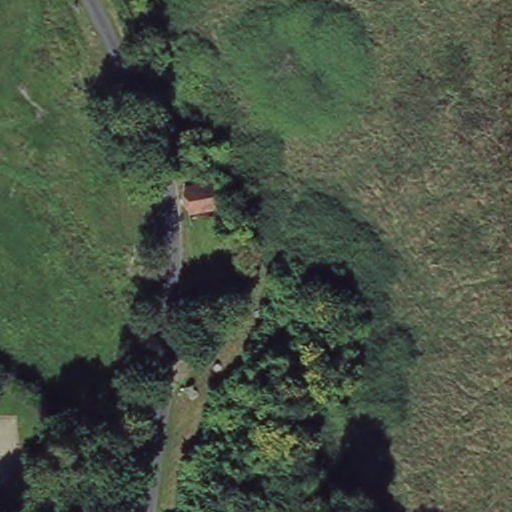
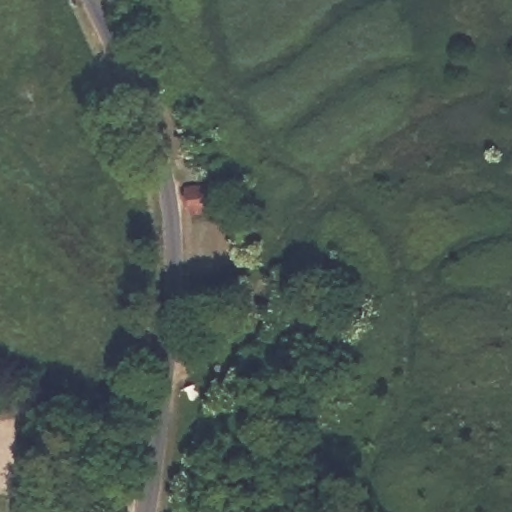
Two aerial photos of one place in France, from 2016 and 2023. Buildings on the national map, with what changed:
unchanged [(217,190),(221,219),(196,227),(189,197),(199,195),(217,190)]

